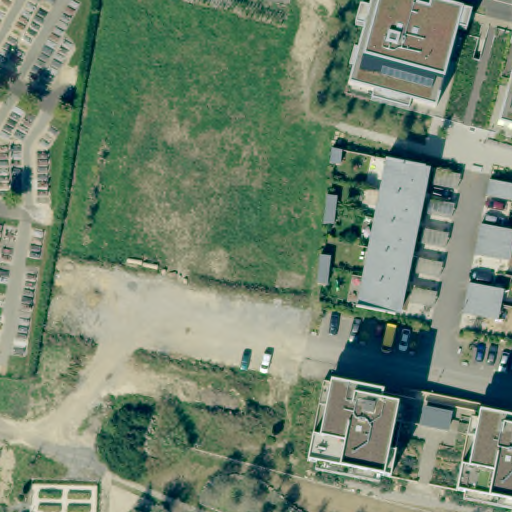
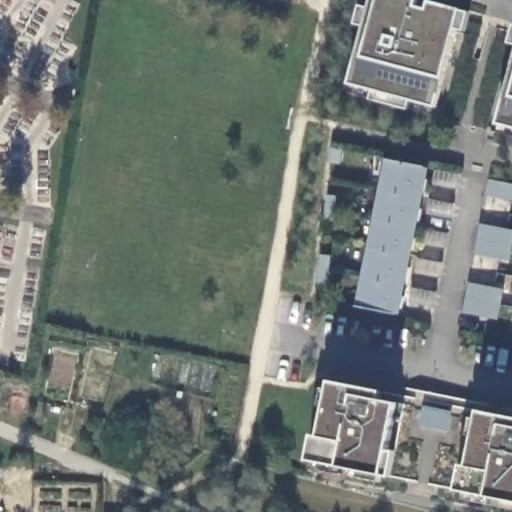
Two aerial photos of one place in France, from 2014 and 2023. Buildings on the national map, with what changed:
unchanged [(456,29),(444,78),(436,105),(411,99),(409,108),(372,99),(375,90),(349,83),(364,27),(355,24),(362,6),(369,8),(371,0),(419,0),(418,6),(428,10),(431,1),(471,12),(466,30),(456,29)]
unchanged [(512,39),(512,46),(511,45),(512,39)]
unchanged [(512,71),(512,127),(498,124),(512,71)]
unchanged [(340,163),(330,162),(331,147),(341,149),(340,163)]
unchanged [(424,191),(419,190),(418,195),(380,188),(385,159),(385,158),(412,163),(424,165),(424,166),(421,178),(427,179),(424,191)]
unchanged [(456,188),(432,183),(435,168),(435,167),(460,172),(456,188)]
unchanged [(486,194),(489,178),(512,183),(512,200),(511,199),(486,194)]
unchanged [(415,207),(421,208),(419,220),(413,219),(412,224),(373,217),(373,216),(374,216),(380,188),(418,195),(415,207)]
unchanged [(335,209),(333,223),(323,222),(325,207),(326,194),(336,195),(335,209)]
unchanged [(451,217),(426,213),(429,197),(454,202),(451,217)]
unchanged [(410,236),(415,237),(413,250),(407,248),(406,254),(376,248),(367,246),(368,246),(373,217),(412,224),(410,236)]
unchanged [(474,253),(477,238),(480,222),(506,228),(512,229),(512,245),(510,254),(509,260),(500,258),(474,253)]
unchanged [(445,247),(420,242),(423,226),(448,231),(445,247)]
unchanged [(407,279),(401,278),(400,283),(386,280),(361,275),(367,246),(376,248),(406,254),(404,266),(409,267),(407,279)]
unchanged [(317,282),(318,267),(320,254),(330,255),(328,269),(327,283),(317,282)]
unchanged [(439,276),(414,271),(417,256),(442,261),(439,276)]
unchanged [(356,305),(361,275),(386,280),(400,283),(398,295),(403,296),(401,308),(395,307),(394,312),(395,312),(395,313),(393,313),(380,310),(379,310),(355,306),(356,305)]
unchanged [(462,312),(465,296),(468,281),(494,286),(503,288),(502,294),(500,303),(498,313),(497,319),(488,317),(462,312)]
unchanged [(433,306),(408,301),(411,285),(436,290),(433,306)]
unchanged [(390,475),(389,476),(389,475),(380,474),(316,461),(308,459),(308,460),(307,459),(312,433),(319,435),(330,380),(356,385),(373,389),(382,390),(380,398),(398,402),(388,448),(395,450),(390,475)]
unchanged [(450,412),(446,429),(421,424),(424,407),(450,412)]
unchanged [(456,489),(455,489),(460,463),(467,464),(477,417),(478,409),(512,416),(512,500),(464,490),(456,489)]

